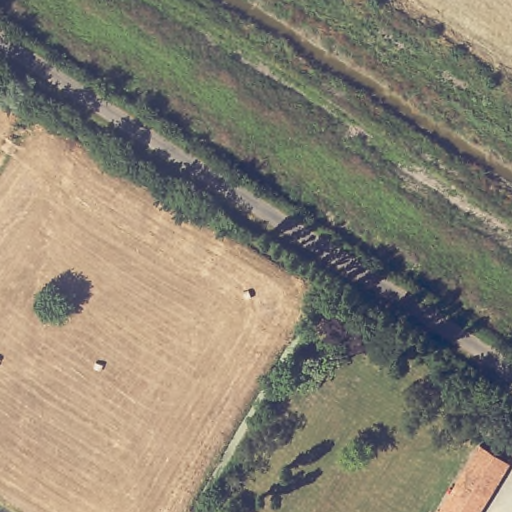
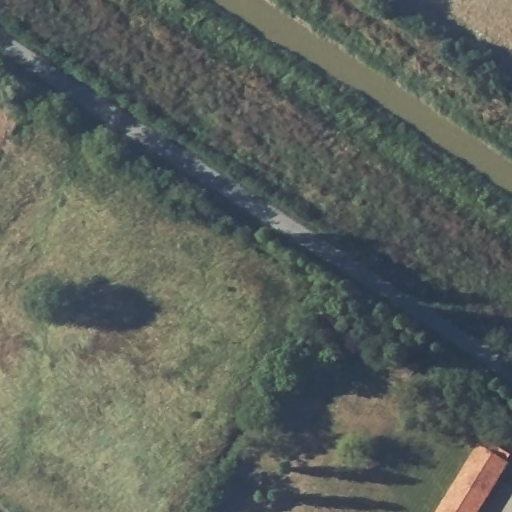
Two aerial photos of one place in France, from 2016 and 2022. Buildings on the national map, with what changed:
unchanged [(482,512),(439,512),(468,466),(481,473),(498,486),(482,512)]

